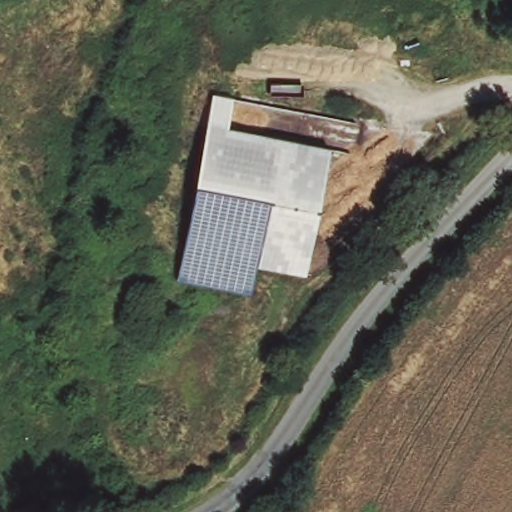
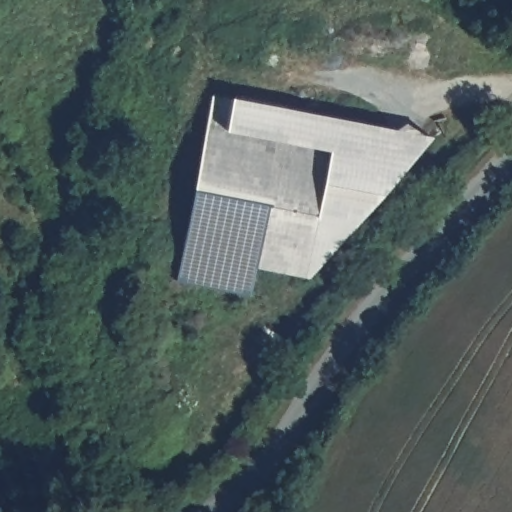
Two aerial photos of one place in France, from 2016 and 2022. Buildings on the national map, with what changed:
unchanged [(254,269),(250,293),(177,280),(210,94),(234,98),(227,133),(330,150),(307,278),(254,269)]
new [(330,150),(227,133),(234,98),(433,136),(307,278),(330,150)]

